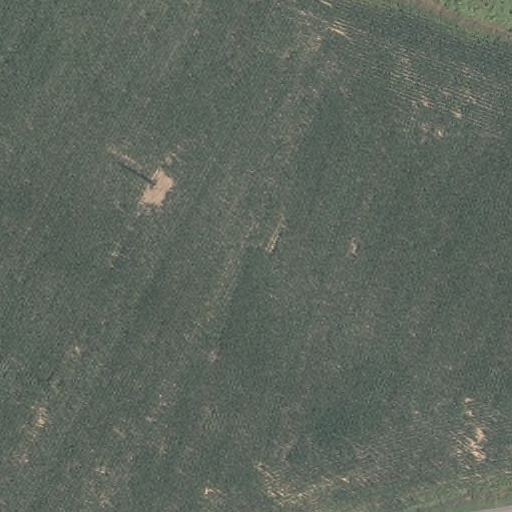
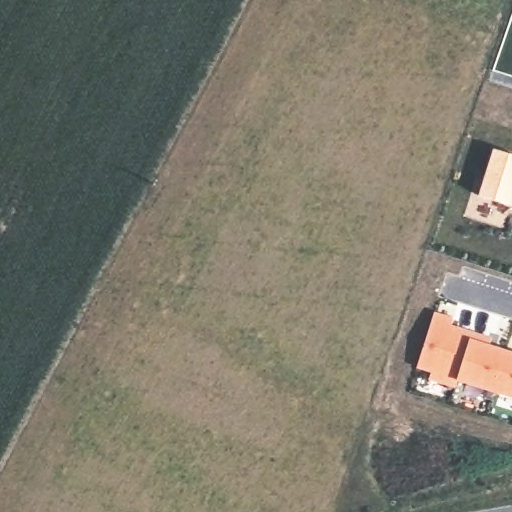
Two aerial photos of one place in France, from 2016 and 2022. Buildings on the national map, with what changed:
unchanged [(512,156),(512,205),(480,196),(495,151),(512,156)]
new [(436,316),(456,323),(453,330),(493,343),(491,350),(512,356),(512,399),(457,380),(455,387),(429,378),(431,371),(417,366),(436,316)]

